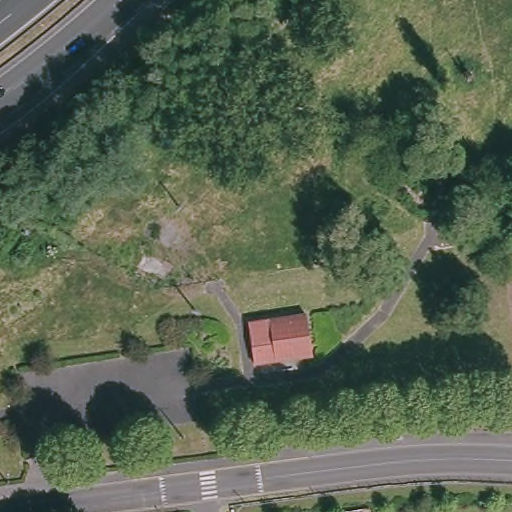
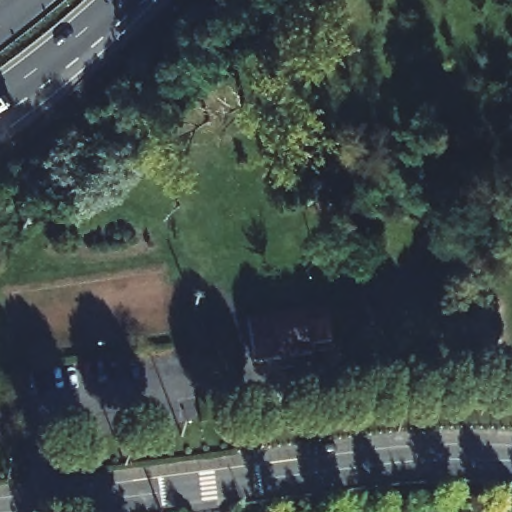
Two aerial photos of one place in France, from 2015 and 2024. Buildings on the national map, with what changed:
unchanged [(303,310),(311,350),(254,362),(245,322),(303,310)]

